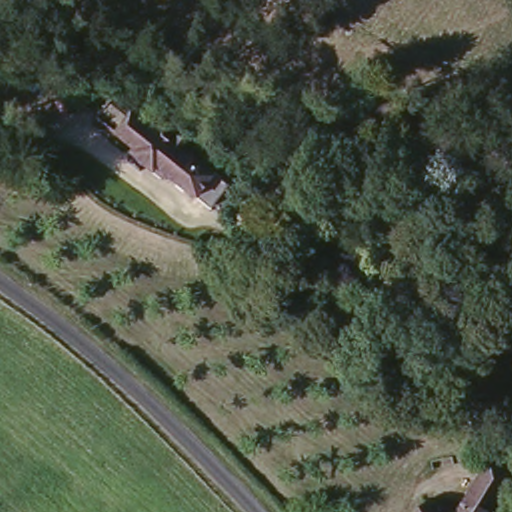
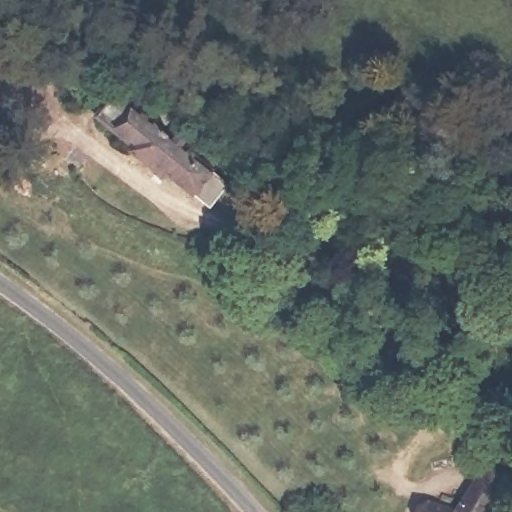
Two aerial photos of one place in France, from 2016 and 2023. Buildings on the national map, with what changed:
unchanged [(162,129),(168,123),(177,130),(172,137),(217,173),(197,198),(143,154),(138,158),(121,143),(124,139),(86,106),(105,83),(162,129)]
unchanged [(448,509),(478,460),(497,473),(472,512),(412,512),(414,507),(417,499),(448,509)]

